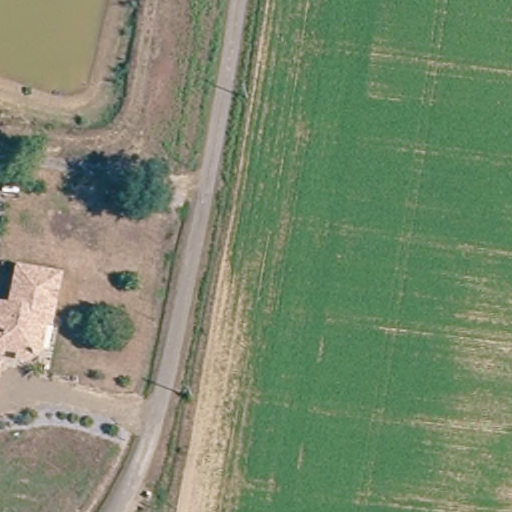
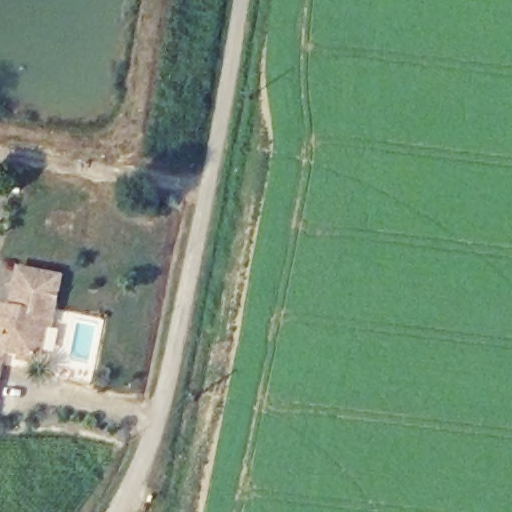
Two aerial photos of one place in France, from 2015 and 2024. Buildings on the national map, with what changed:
unchanged [(40,316),(38,348),(30,355),(18,354),(19,349),(1,347),(1,352),(0,352),(0,305),(5,305),(7,266),(49,269),(45,310),(45,316),(40,316)]

